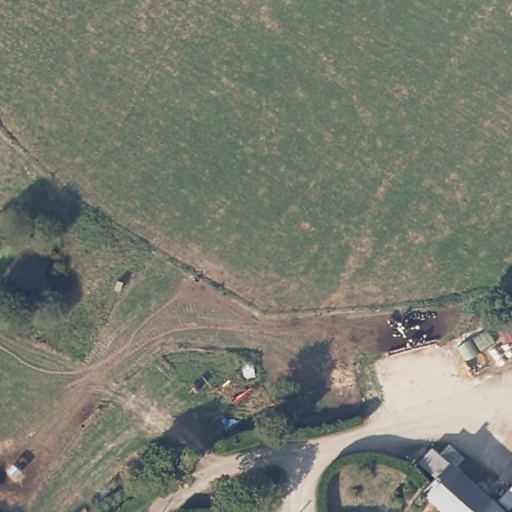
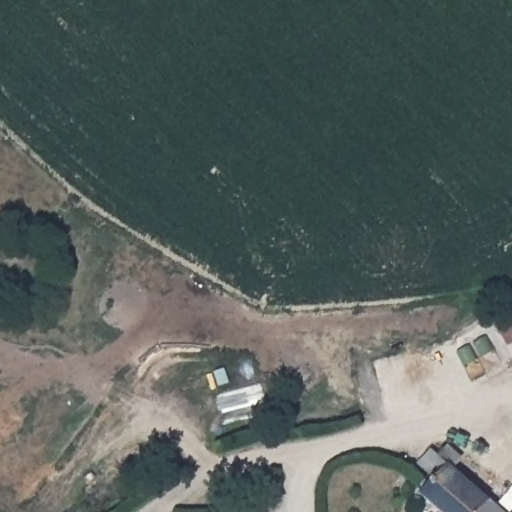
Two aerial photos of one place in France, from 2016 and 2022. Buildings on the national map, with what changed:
unchanged [(497,320),(512,312),(512,343),(511,343),(497,320)]
unchanged [(441,482),(426,466),(442,450),(450,456),(456,447),(472,462),(465,471),(511,512),(449,512),(430,496),(441,482)]

